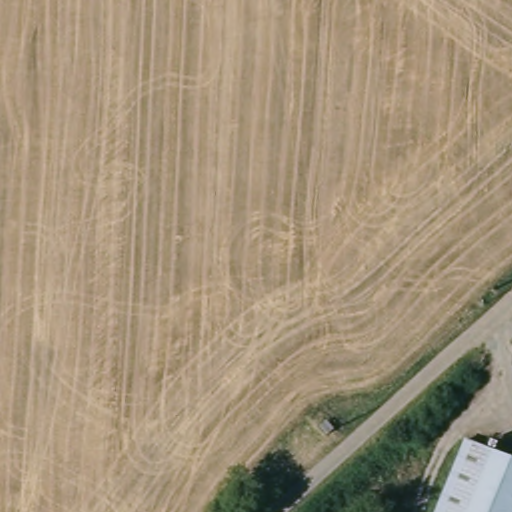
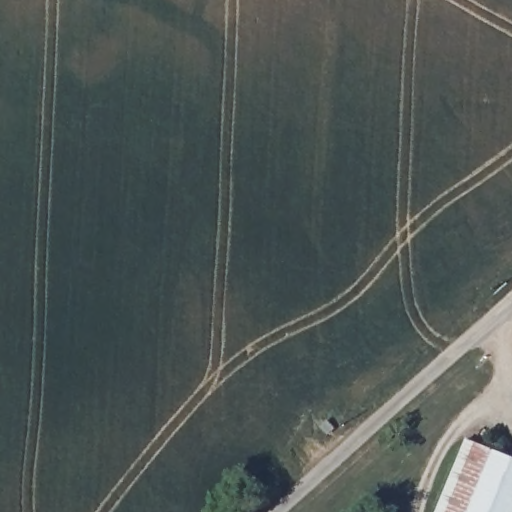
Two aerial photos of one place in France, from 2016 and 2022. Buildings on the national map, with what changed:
unchanged [(435,512),(466,436),(512,455),(512,512),(435,512)]

